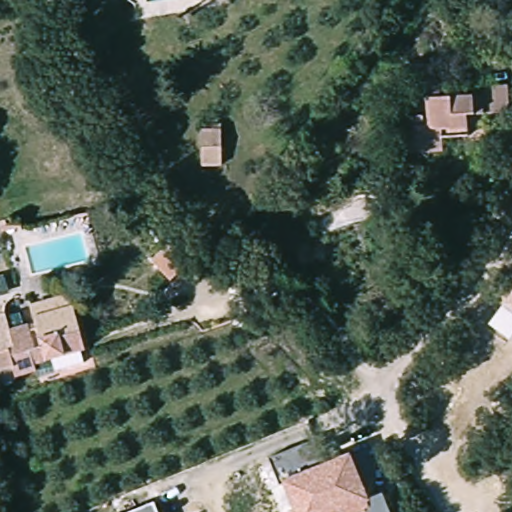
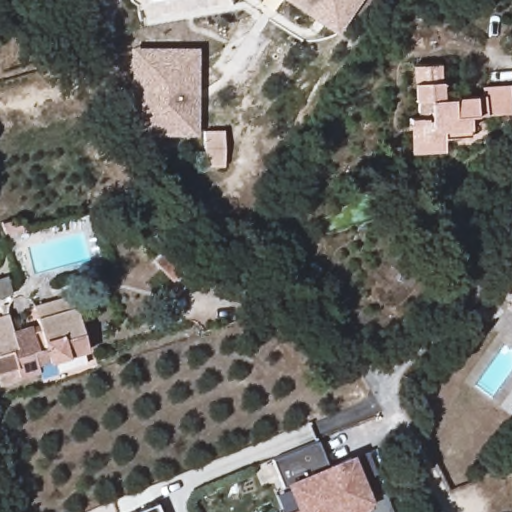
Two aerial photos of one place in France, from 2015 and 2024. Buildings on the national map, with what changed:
new [(337,34),(285,0),(360,0),(337,34)]
new [(196,46),(195,135),(130,135),(130,47),(196,46)]
unchanged [(459,116),(459,133),(440,134),(440,145),(412,146),(408,69),(427,68),(430,101),(473,97),(472,86),(503,85),(504,113),(459,116)]
unchanged [(204,168),(198,130),(217,128),(223,165),(204,168)]
unchanged [(194,256),(212,272),(202,291),(176,273),(190,253),(194,256)]
unchanged [(39,358),(40,367),(14,375),(11,366),(0,369),(0,317),(6,336),(33,328),(31,317),(27,302),(65,294),(69,309),(78,349),(39,358)]
unchanged [(489,325),(512,294),(512,338),(510,340),(489,325)]
unchanged [(342,512),(296,512),(285,486),(281,486),(271,459),(316,441),(325,464),(350,454),(370,500),(383,494),(390,512),(343,512),(343,511),(342,512)]
unchanged [(157,512),(135,512),(154,504),(157,512)]

